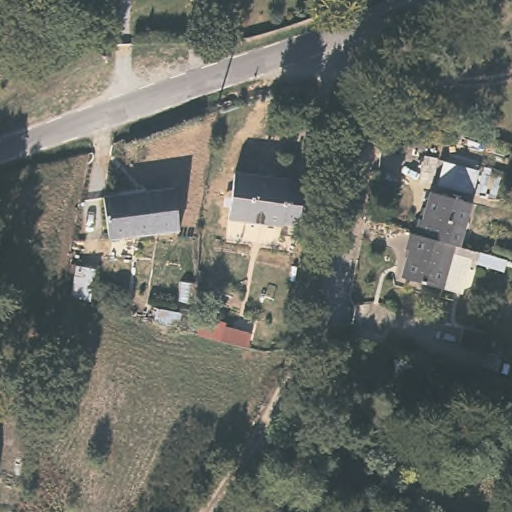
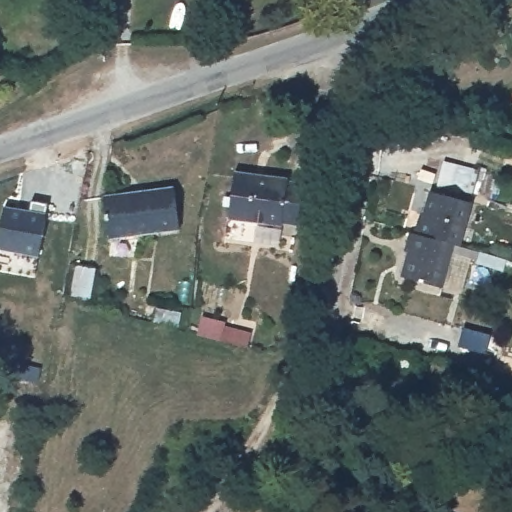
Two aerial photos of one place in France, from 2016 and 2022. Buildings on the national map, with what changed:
unchanged [(287,179),(287,183),(305,185),(299,225),(284,223),(279,225),(229,219),(235,172),(287,179)]
unchanged [(180,228),(108,239),(103,196),(174,186),(180,228)]
unchanged [(417,217),(422,216),(429,190),(469,202),(457,247),(412,234),(417,217)]
new [(29,210),(31,200),(49,202),(39,257),(0,249),(0,226),(4,206),(29,210)]
unchanged [(457,247),(478,253),(476,260),(451,252),(441,288),(401,276),(408,249),(404,247),(408,233),(412,234),(457,247)]
unchanged [(95,268),(89,305),(69,299),(77,264),(95,268)]
unchanged [(253,327),(248,345),(219,338),(223,326),(231,328),(233,322),(253,327)]
unchanged [(430,512),(431,511),(434,512),(430,512)]

